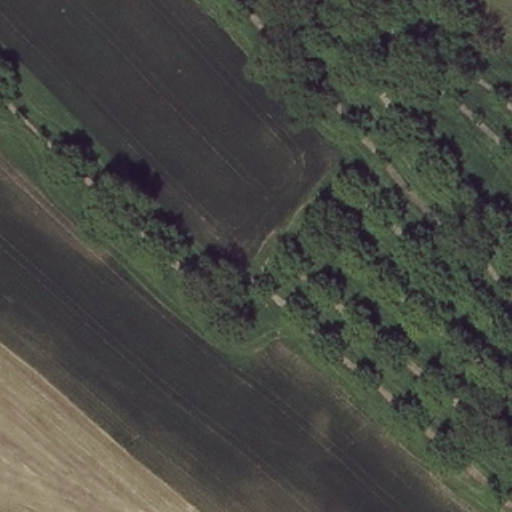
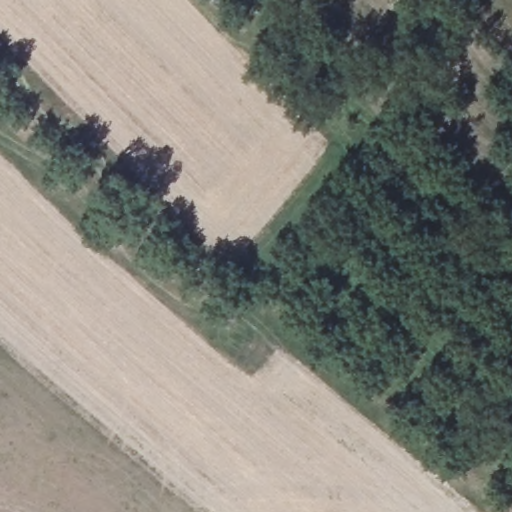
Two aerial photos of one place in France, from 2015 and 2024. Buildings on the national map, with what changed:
[]

